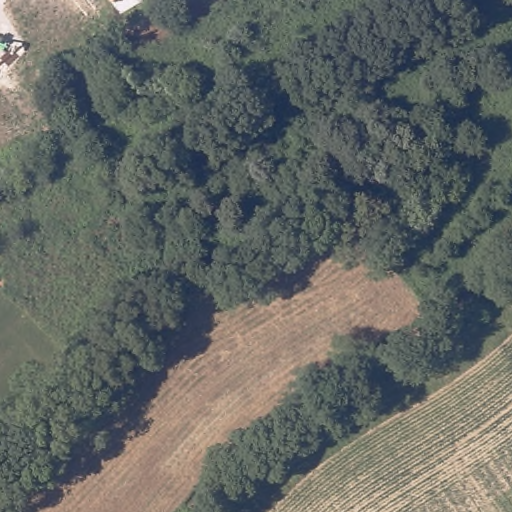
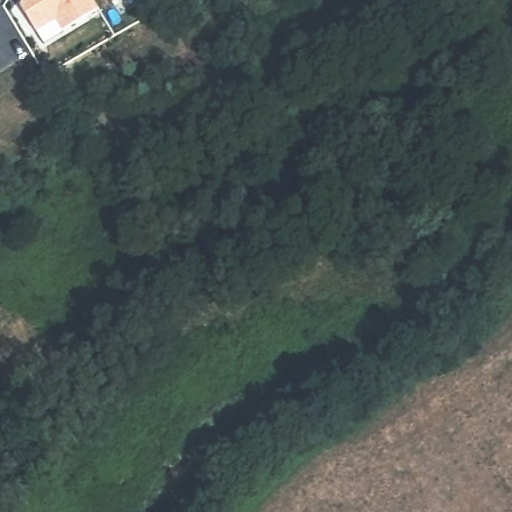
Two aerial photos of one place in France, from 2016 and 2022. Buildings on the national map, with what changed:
new [(20,0),(91,0),(96,9),(60,30),(54,20),(34,31),(18,4),(20,0)]
unchanged [(111,5),(109,0),(120,0),(111,5)]

